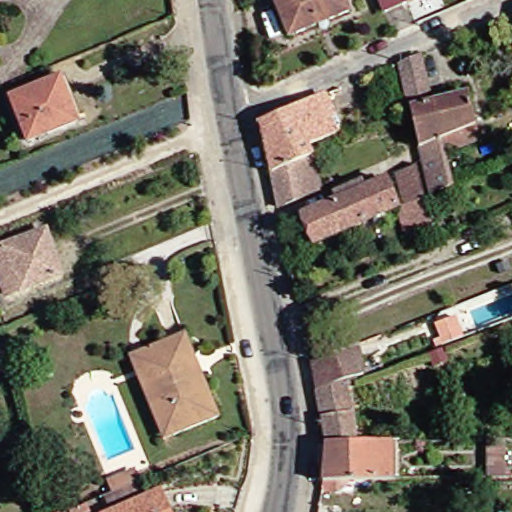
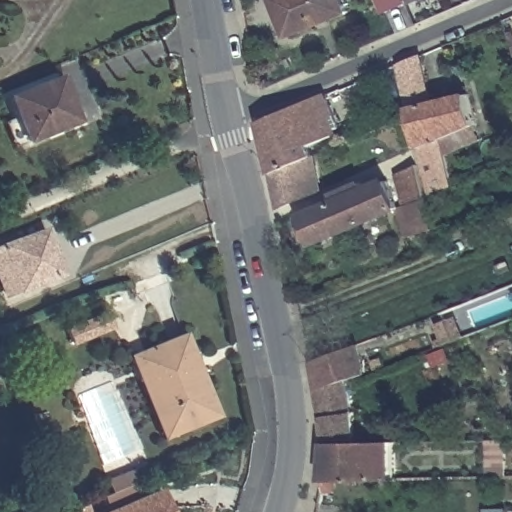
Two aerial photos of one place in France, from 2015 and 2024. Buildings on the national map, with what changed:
unchanged [(290,33),(276,0),(344,0),(348,9),(290,33)]
unchanged [(400,5),(378,14),(373,0),(399,0),(400,2),(400,5)]
unchanged [(406,0),(400,2),(399,0),(406,0)]
unchanged [(412,151),(393,70),(415,60),(427,106),(463,98),(472,129),(412,151)]
unchanged [(26,138),(7,94),(57,73),(76,117),(26,138)]
unchanged [(268,172),(257,122),(318,97),(319,100),(324,98),(336,128),(331,130),(332,134),(303,147),(307,156),(296,160),(302,181),(272,189),(268,172)]
unchanged [(474,138),(434,153),(444,192),(444,194),(424,201),(412,151),(472,129),(474,138)]
unchanged [(411,171),(418,203),(425,235),(404,243),(392,180),(411,171)]
unchanged [(394,215),(310,251),(300,225),(383,189),(394,215)]
unchanged [(50,278),(2,296),(0,290),(0,245),(41,229),(50,252),(58,275),(50,278)]
unchanged [(178,333),(212,416),(166,435),(141,374),(146,372),(137,350),(178,333)]
unchanged [(355,345),(360,374),(341,381),(313,391),(308,364),(355,345)]
unchanged [(157,439),(122,356),(137,350),(146,372),(141,374),(166,435),(157,439)]
unchanged [(323,444),(313,391),(341,381),(350,443),(323,444)]
unchanged [(455,440),(456,452),(433,453),(432,441),(455,440)]
unchanged [(371,442),(372,480),(319,481),(323,444),(350,443),(371,442)]
unchanged [(121,469),(125,478),(136,473),(139,481),(119,489),(112,473),(121,469)]
unchanged [(156,488),(166,512),(95,512),(156,488)]
unchanged [(63,511),(63,512),(62,512),(63,511)]

